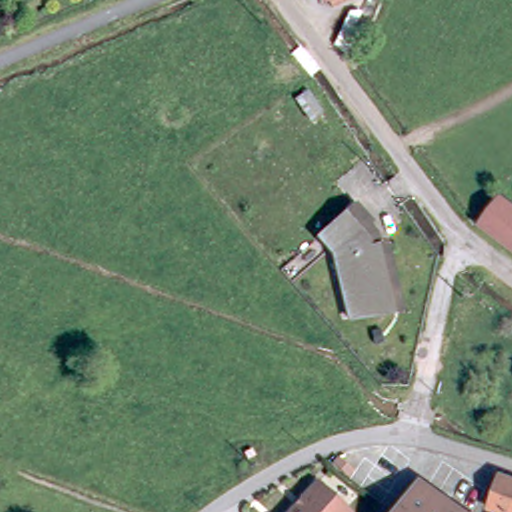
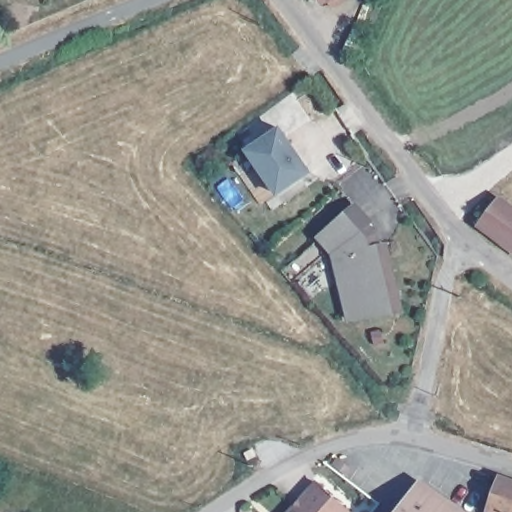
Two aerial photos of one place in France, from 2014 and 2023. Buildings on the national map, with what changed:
unchanged [(331,0),(335,0),(332,1),(331,0)]
unchanged [(308,105),(326,127),(313,137),(295,114),(308,105)]
new [(314,173),(284,192),(253,149),(282,128),(314,173)]
unchanged [(484,219),(503,194),(512,200),(512,241),(484,219)]
unchanged [(378,224),(374,227),(383,238),(400,309),(355,320),(339,254),(326,237),(362,206),(378,224)]
unchanged [(484,505),(497,467),(512,472),(512,512),(507,512),(484,505)]
unchanged [(399,476),(414,486),(396,512),(372,512),(383,497),(399,476)]
unchanged [(414,486),(419,480),(466,512),(396,512),(414,486)]
unchanged [(311,492),(322,481),(355,512),(291,512),(311,492)]

